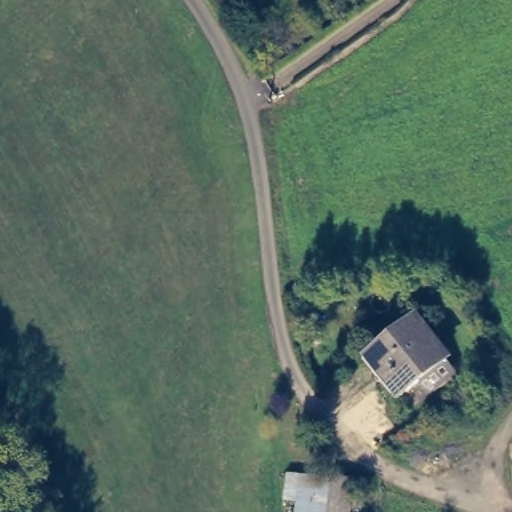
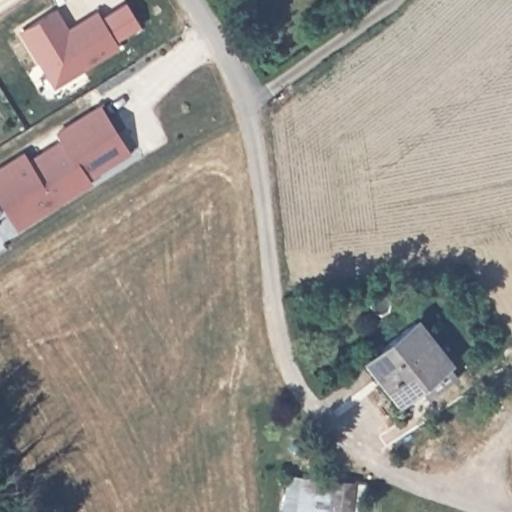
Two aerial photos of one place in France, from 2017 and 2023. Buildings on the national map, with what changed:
new [(55,10),(69,32),(80,25),(79,23),(97,12),(117,46),(55,84),(25,28),(55,10)]
new [(10,215),(0,199),(0,167),(23,153),(28,161),(63,139),(58,131),(100,106),(117,135),(128,151),(123,154),(87,176),(90,181),(47,208),(17,226),(10,215)]
unchanged [(363,341),(409,304),(450,358),(407,396),(394,381),(377,358),(363,341)]
unchanged [(353,481),(350,512),(297,512),(300,475),(353,481)]

